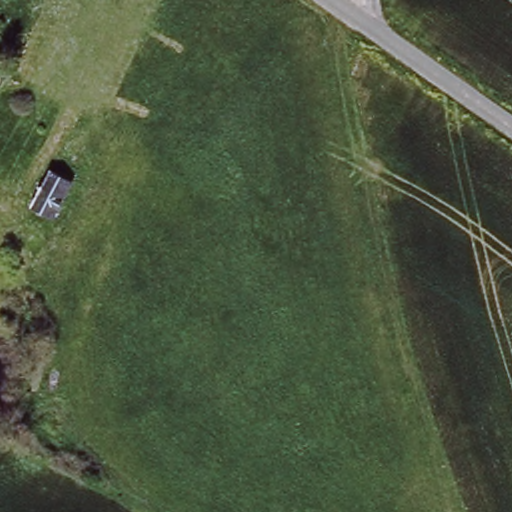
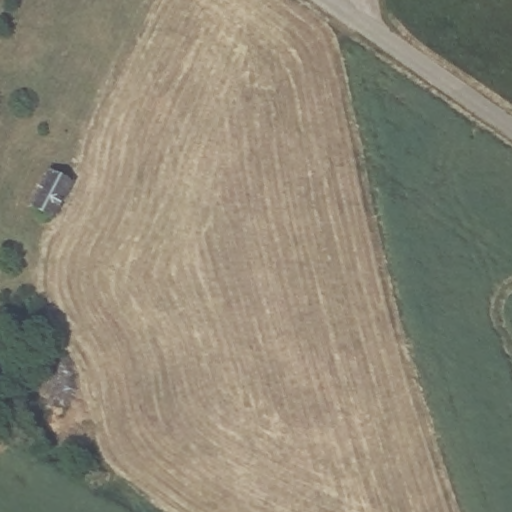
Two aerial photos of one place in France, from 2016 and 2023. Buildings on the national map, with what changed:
unchanged [(47,164),(77,179),(54,217),(27,203),(47,164)]

